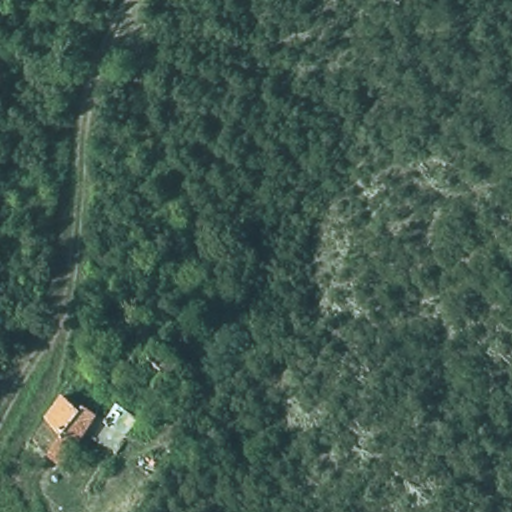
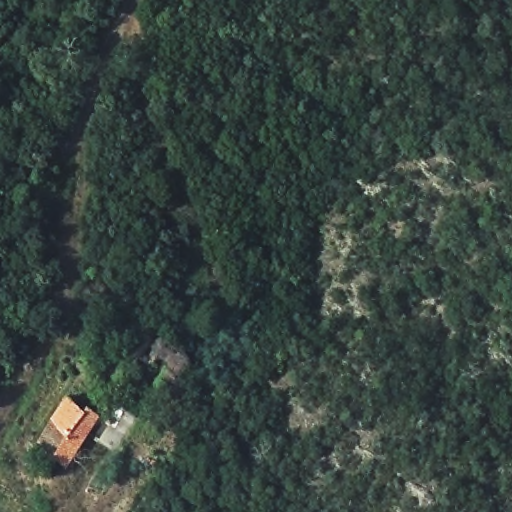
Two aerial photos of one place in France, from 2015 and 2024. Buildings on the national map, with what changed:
unchanged [(60,404),(76,414),(83,405),(102,420),(65,477),(31,444),(60,404)]

